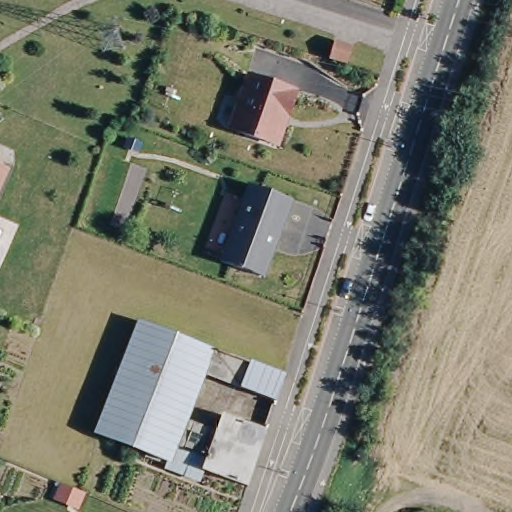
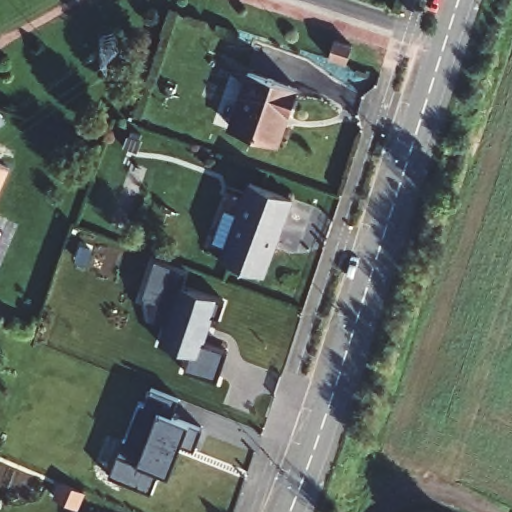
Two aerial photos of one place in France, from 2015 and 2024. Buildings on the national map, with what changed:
unchanged [(326,37),(345,43),(339,62),(320,56),(326,37)]
unchanged [(234,134),(243,111),(240,104),(249,78),(298,96),(290,120),(285,119),(274,148),(234,134)]
unchanged [(4,172),(0,180),(0,170),(4,172)]
unchanged [(245,187),(287,204),(258,280),(216,264),(245,187)]
new [(218,381),(185,370),(190,352),(160,342),(166,322),(150,317),(144,293),(156,259),(186,276),(182,286),(225,301),(219,317),(213,316),(205,342),(229,349),(218,381)]
demolished [(93,436),(102,412),(114,379),(131,336),(136,322),(278,379),(270,404),(202,378),(191,410),(185,425),(214,435),(220,421),(221,418),(260,432),(259,437),(255,447),(242,488),(202,474),(198,483),(163,470),(166,464),(121,447),(93,436)]
new [(170,476),(159,472),(151,492),(112,477),(140,404),(146,406),(153,388),(179,399),(172,417),(203,428),(195,449),(182,445),(170,476)]
unchanged [(78,491),(72,506),(49,497),(55,482),(78,491)]

